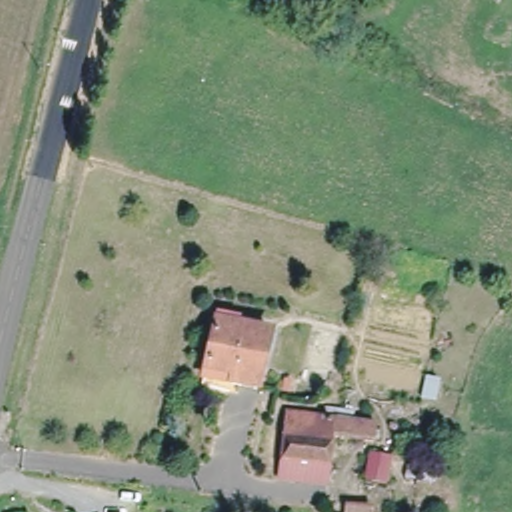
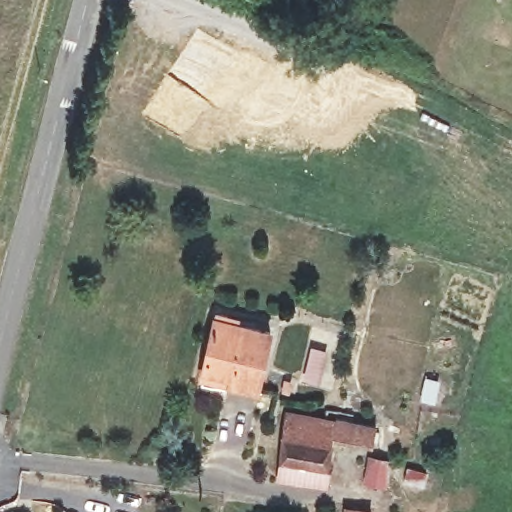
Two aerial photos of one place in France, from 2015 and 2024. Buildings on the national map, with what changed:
unchanged [(201,386),(205,369),(209,369),(220,319),(277,331),(263,395),(233,388),(232,393),(201,386)]
unchanged [(290,412),(326,416),(327,408),(345,410),(355,411),(353,426),(380,429),(376,452),(338,446),(328,484),(278,479),(290,412)]
unchanged [(397,471),(391,492),(374,487),(378,468),(397,471)]
unchanged [(349,504),(378,509),(378,512),(348,512),(349,504)]

